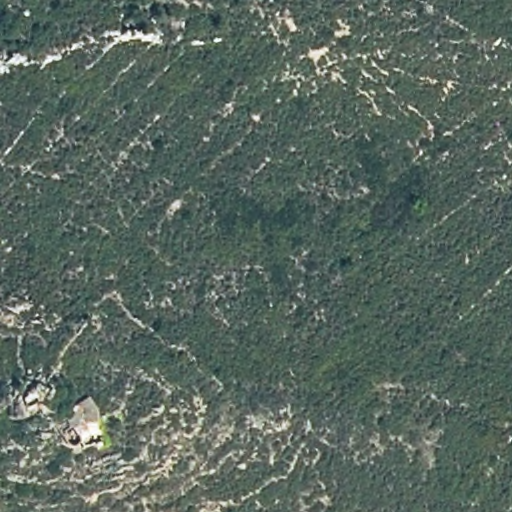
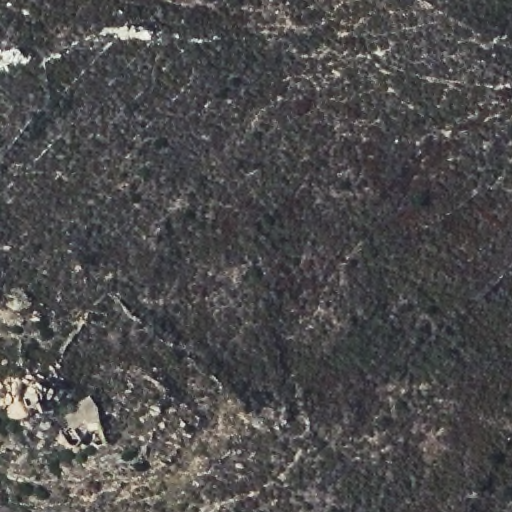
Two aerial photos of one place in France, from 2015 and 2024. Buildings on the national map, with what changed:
unchanged [(91,397),(109,414),(98,424),(105,441),(107,445),(83,458),(77,448),(60,418),(91,397)]

